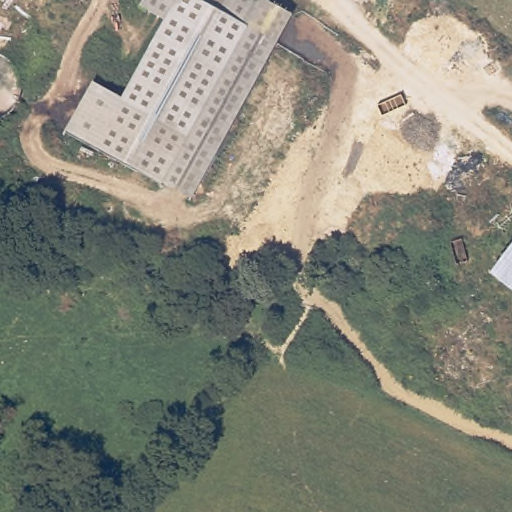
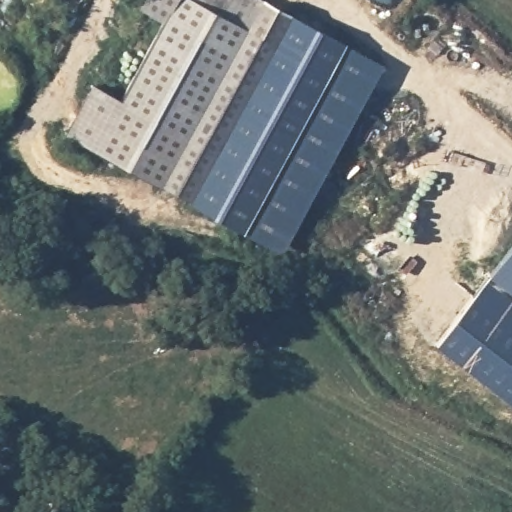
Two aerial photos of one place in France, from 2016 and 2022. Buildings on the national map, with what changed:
unchanged [(248,26),(277,40),(197,201),(70,137),(76,125),(95,88),(99,90),(124,102),(165,21),(149,14),(140,9),(144,0),(261,0),(248,26)]
new [(248,26),(261,0),(267,0),(385,65),(282,252),(197,201),(277,40),(248,26)]
unchanged [(512,290),(490,272),(512,243),(512,290)]

